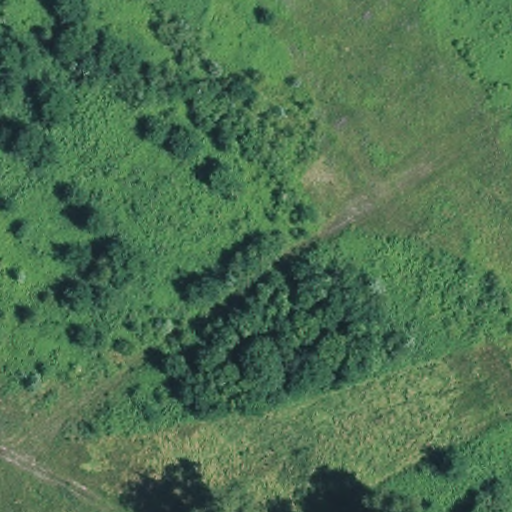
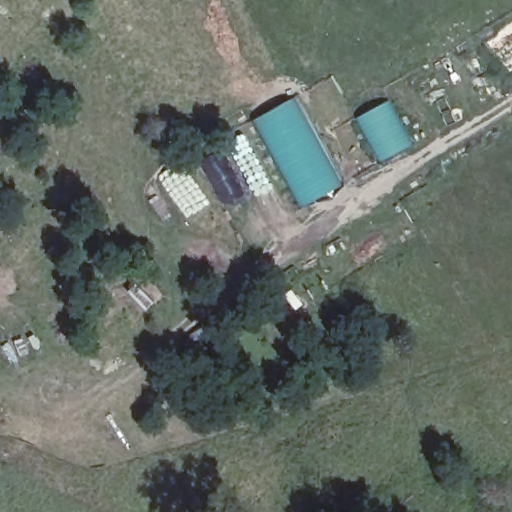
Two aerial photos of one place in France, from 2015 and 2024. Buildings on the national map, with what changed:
new [(294,96),(342,184),(300,207),(252,119),(294,96)]
new [(389,98),(413,144),(378,163),(353,117),(389,98)]

